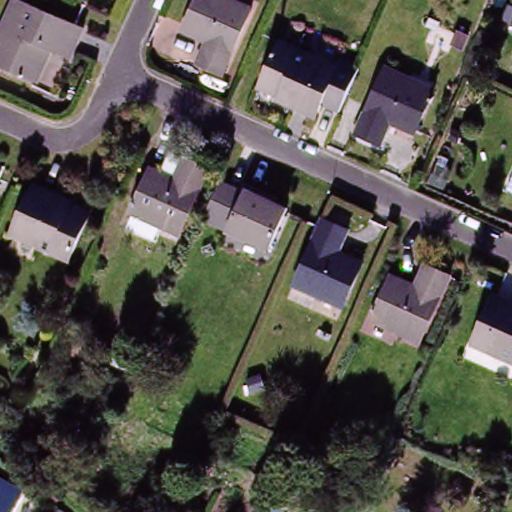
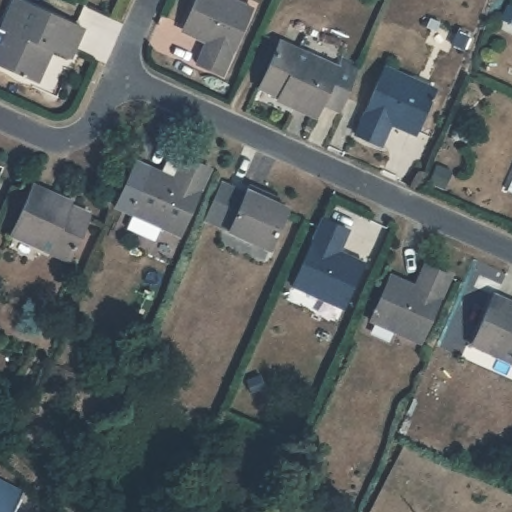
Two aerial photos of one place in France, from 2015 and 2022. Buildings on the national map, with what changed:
unchanged [(195,0),(240,0),(251,5),(222,72),(196,60),(205,40),(181,29),(184,25),(195,0)]
unchanged [(79,36),(65,65),(48,56),(33,89),(0,74),(0,29),(11,5),(79,36)]
unchanged [(460,49),(452,45),(458,31),(466,34),(460,49)]
unchanged [(283,99),(264,90),(285,44),(342,70),(320,120),(297,110),(282,102),(283,99)]
unchanged [(385,131),(375,152),(350,141),(386,62),(436,85),(412,139),(410,142),(385,131)]
unchanged [(462,132),(457,143),(448,139),(453,129),(462,132)]
unchanged [(160,227),(154,241),(126,229),(132,215),(130,215),(148,174),(150,169),(175,180),(185,159),(210,170),(180,237),(160,227)]
unchanged [(444,189),(429,182),(436,165),(451,171),(444,189)]
unchanged [(65,257),(6,231),(29,181),(51,192),(65,199),(64,202),(85,212),(65,257)]
unchanged [(225,187),(250,200),(234,236),(209,225),(220,200),(225,187)]
unchanged [(511,192),(512,190),(512,192),(511,192)]
unchanged [(275,255),(234,236),(250,200),(254,191),(267,198),(281,205),(279,208),(294,215),(275,255)]
unchanged [(288,286),(317,220),(343,232),(333,254),(357,265),(355,270),(337,308),(288,286)]
unchanged [(465,282),(435,350),(385,328),(402,287),(405,282),(429,293),(440,270),(465,282)]
unchanged [(466,347),(488,296),(511,307),(512,307),(512,367),(466,347)]
unchanged [(135,355),(129,370),(109,361),(115,347),(135,355)]
unchanged [(22,480),(25,482),(42,494),(32,512),(0,512),(0,481),(17,490),(22,480)]

